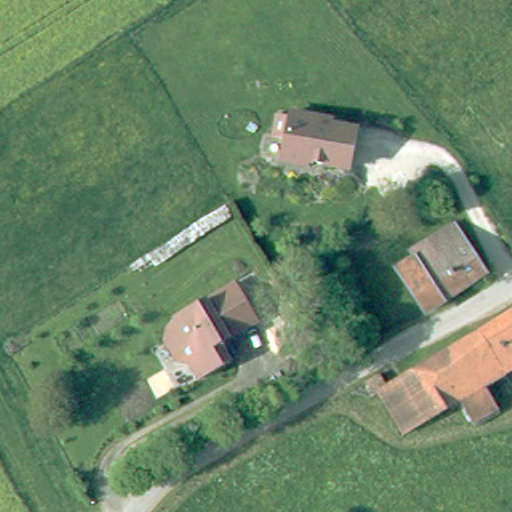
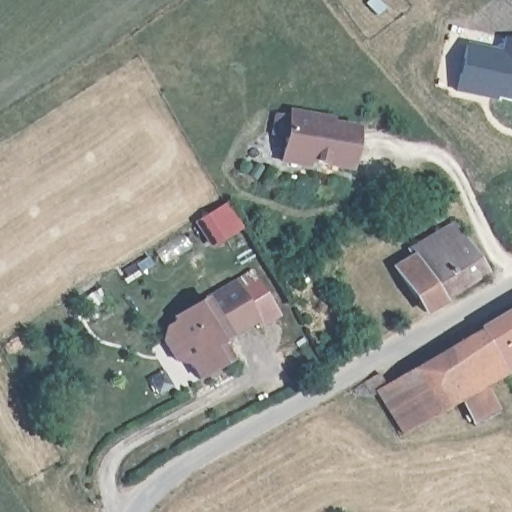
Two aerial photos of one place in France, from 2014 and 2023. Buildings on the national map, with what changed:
new [(504,38),(512,40),(512,103),(497,99),(495,102),(456,91),(467,43),(500,51),(504,38)]
unchanged [(281,163),(282,159),(290,114),(329,122),(329,126),(355,131),(349,171),(307,164),(306,168),(281,163)]
unchanged [(411,305),(387,269),(403,259),(398,251),(429,231),(445,220),(457,239),(478,268),(411,305)]
unchanged [(234,285),(257,324),(220,345),(230,363),(199,382),(190,366),(177,365),(165,344),(169,328),(177,324),(175,320),(234,285)]
unchanged [(500,369),(475,327),(512,303),(512,370),(504,375),(500,369)]
unchanged [(469,420),(455,397),(399,432),(377,394),(369,397),(357,378),(377,367),(387,381),(475,327),(500,369),(477,384),(490,406),(469,420)]

